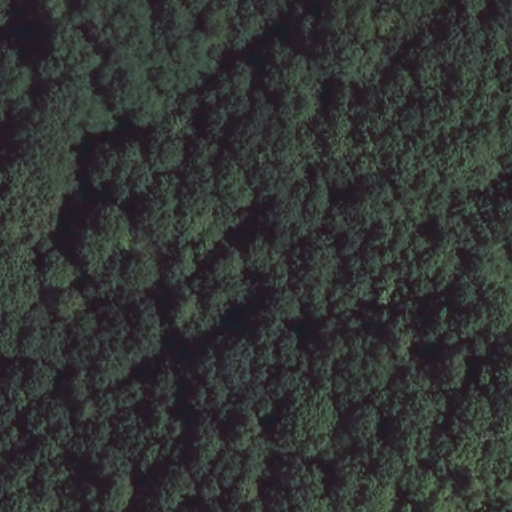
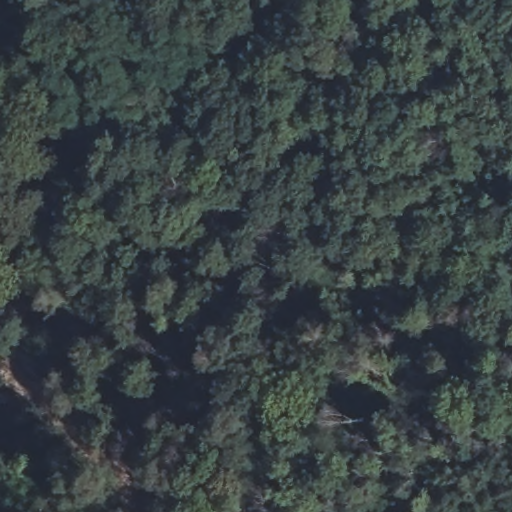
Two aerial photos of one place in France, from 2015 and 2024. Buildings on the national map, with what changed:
[]

